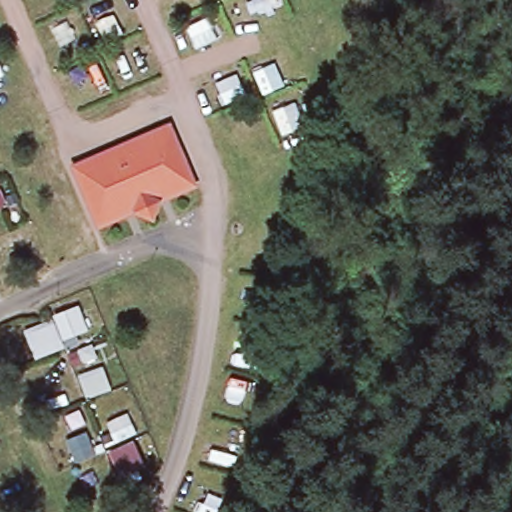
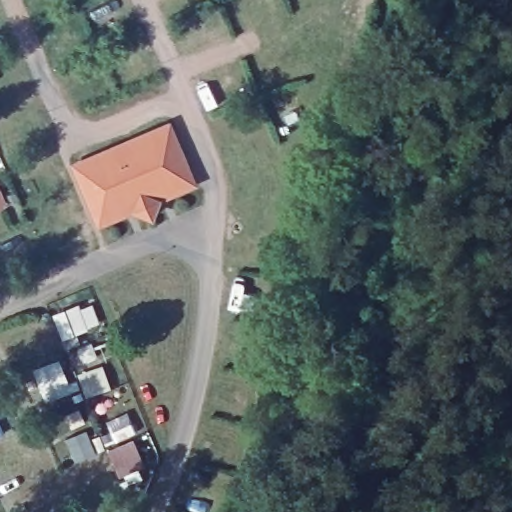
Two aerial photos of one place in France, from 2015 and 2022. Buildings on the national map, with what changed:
unchanged [(96,214),(75,171),(72,164),(168,124),(171,130),(192,170),(96,214)]
unchanged [(192,170),(198,181),(164,194),(152,211),(134,204),(100,221),(96,214),(192,170)]

